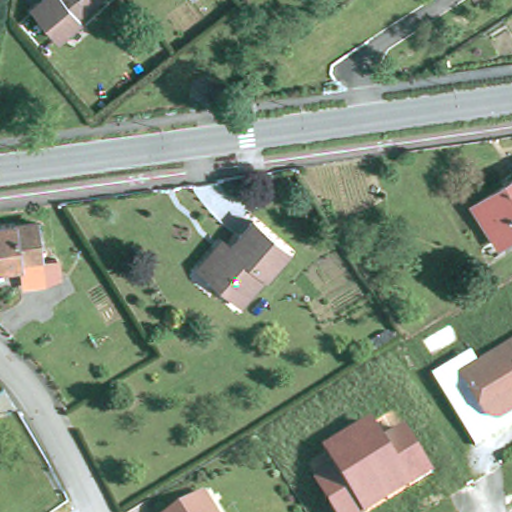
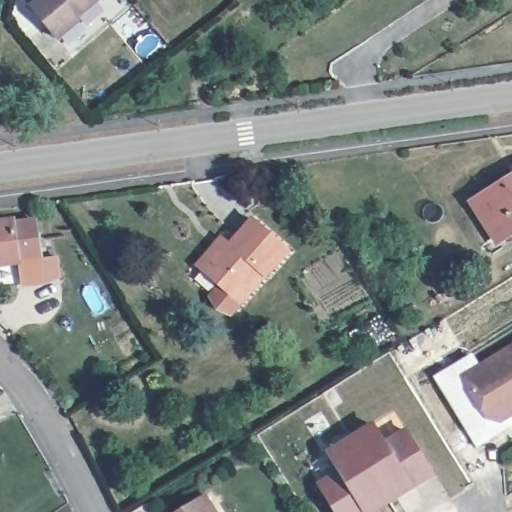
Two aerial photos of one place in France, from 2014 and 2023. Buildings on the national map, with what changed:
unchanged [(75,16),(78,20),(54,40),(30,12),(38,7),(35,4),(38,1),(40,0),(95,0),(75,16)]
unchanged [(495,242),(469,203),(512,176),(512,232),(495,242)]
unchanged [(46,278),(24,281),(21,263),(0,267),(0,223),(39,219),(46,278)]
unchanged [(288,253),(241,306),(205,274),(197,267),(220,241),(228,249),(252,222),(288,253)]
unchanged [(511,429),(481,447),(469,427),(444,386),(438,376),(464,360),(469,370),(472,373),(512,349),(512,429),(511,429)]
unchanged [(338,468),(326,450),(373,422),(386,441),(407,426),(437,474),(377,512),(335,512),(319,483),(338,468)]
unchanged [(219,512),(179,512),(208,494),(219,512)]

